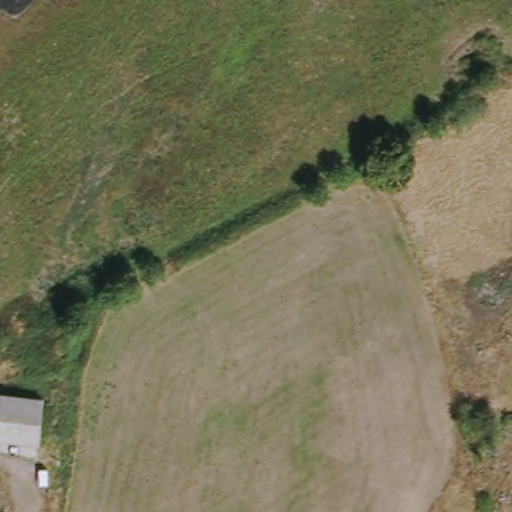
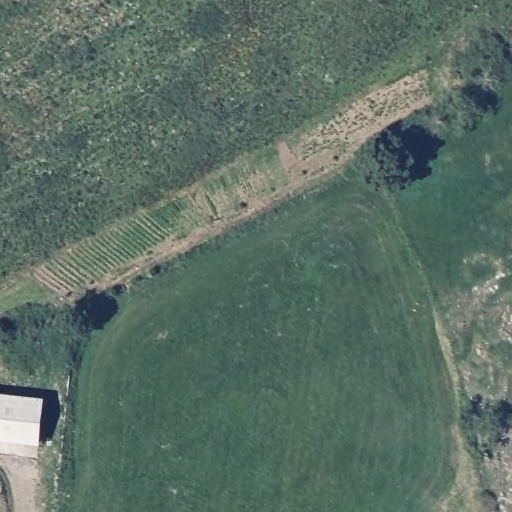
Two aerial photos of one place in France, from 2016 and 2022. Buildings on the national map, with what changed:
unchanged [(49,399),(45,444),(0,439),(0,394),(49,399)]

